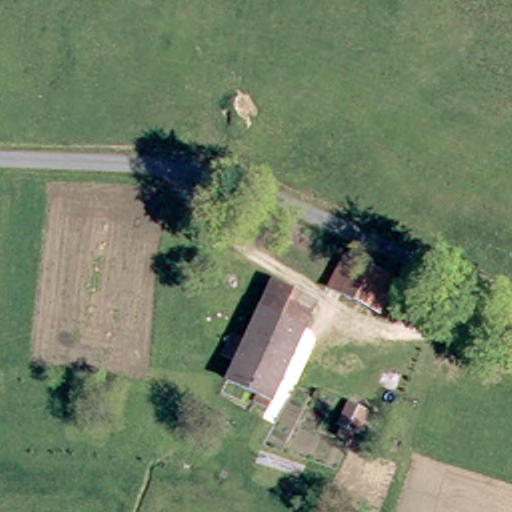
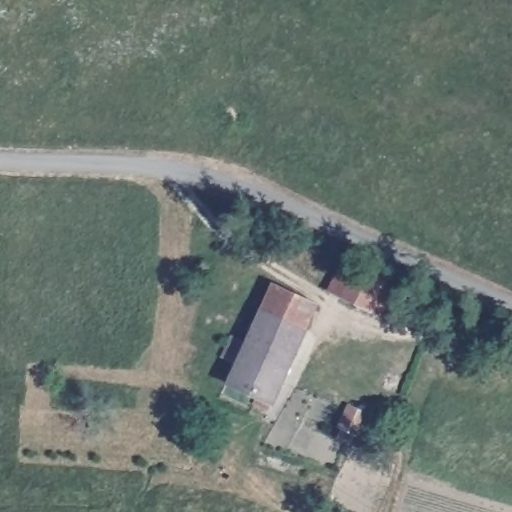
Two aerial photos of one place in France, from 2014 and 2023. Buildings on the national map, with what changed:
unchanged [(348,261),(385,279),(371,310),(335,292),(348,261)]
unchanged [(319,307),(308,330),(265,308),(275,285),(319,307)]
unchanged [(265,397),(230,380),(238,365),(224,358),(237,331),(250,338),(265,308),(308,330),(275,401),(270,413),(259,408),(265,397)]
unchanged [(345,402),(366,412),(355,437),(334,427),(345,402)]

